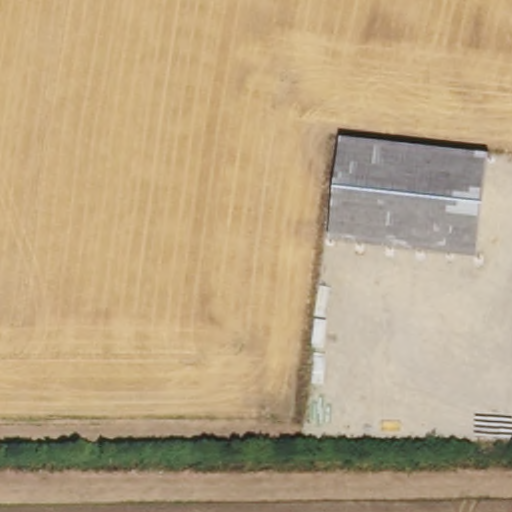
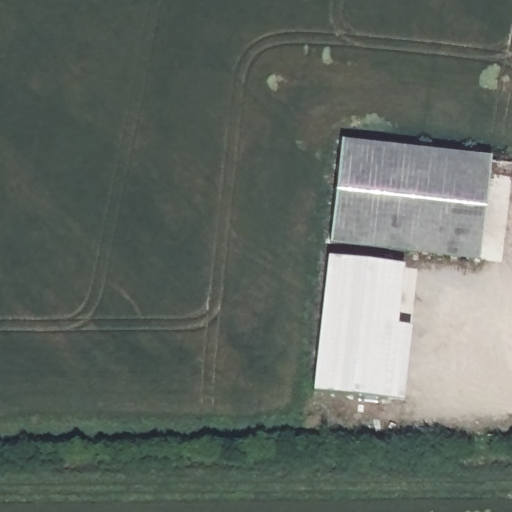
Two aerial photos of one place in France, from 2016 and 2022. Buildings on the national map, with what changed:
unchanged [(341,141),(491,158),(479,259),(331,244),(341,141)]
new [(403,266),(396,325),(412,327),(404,401),(313,392),(328,257),(403,266)]

